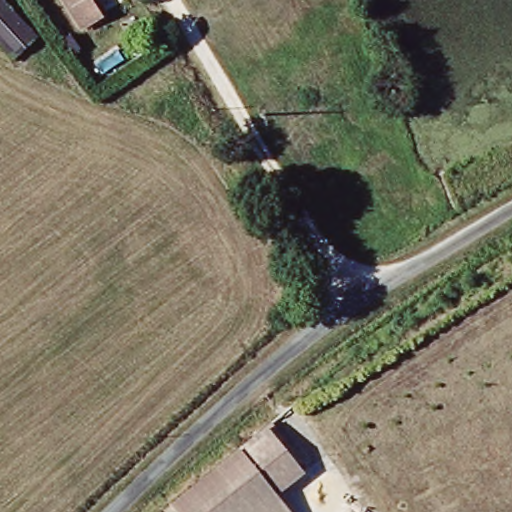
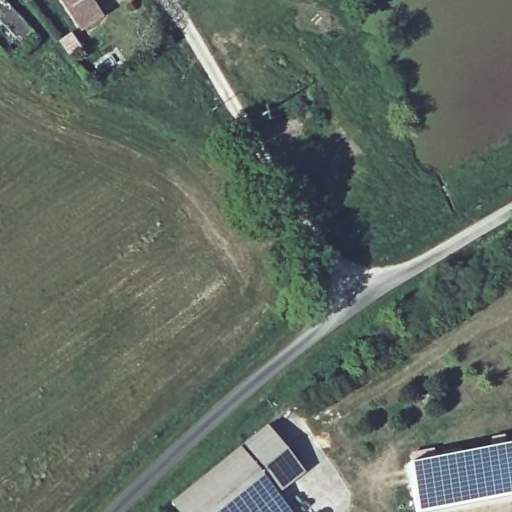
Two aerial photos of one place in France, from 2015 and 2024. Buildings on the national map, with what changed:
unchanged [(108,5),(122,26),(96,43),(68,0),(116,0),(108,5)]
unchanged [(0,60),(0,9),(27,38),(2,62),(0,60)]
unchanged [(295,512),(183,512),(176,503),(245,449),(270,428),(308,472),(283,494),(295,512)]
new [(425,454),(427,464),(487,452),(486,443),(495,441),(497,450),(503,449),(512,493),(512,499),(441,512),(408,512),(400,469),(406,468),(405,459),(425,454)]

